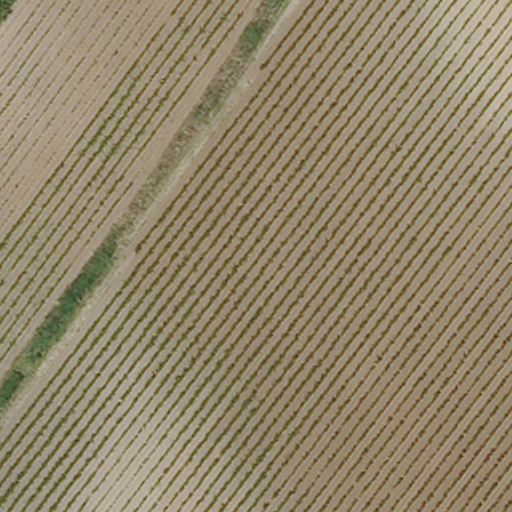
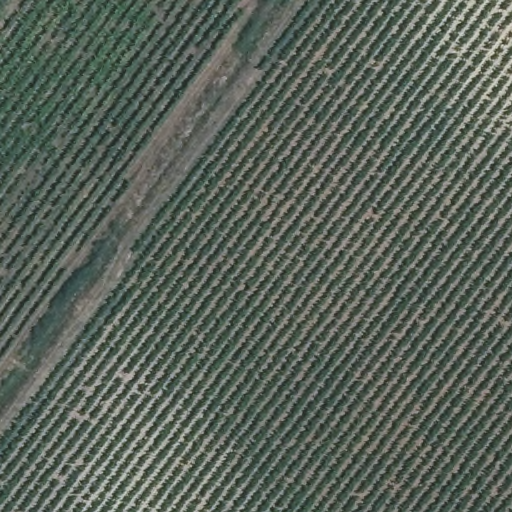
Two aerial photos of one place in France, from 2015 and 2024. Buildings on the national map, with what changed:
[]

